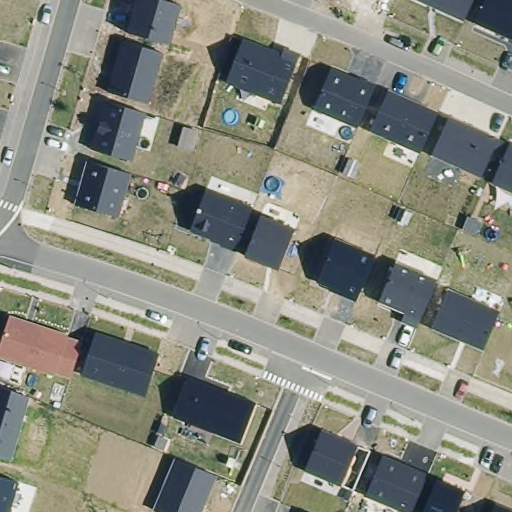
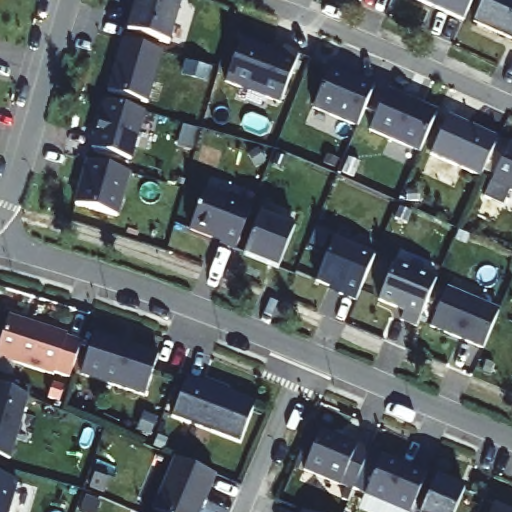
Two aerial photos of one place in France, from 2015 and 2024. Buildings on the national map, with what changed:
unchanged [(136,0),(163,0),(180,4),(171,43),(128,31),(136,0)]
unchanged [(463,21),(415,0),(472,0),(463,21)]
unchanged [(512,39),(473,23),(484,0),(512,0),(512,39)]
unchanged [(282,53),(284,48),(301,54),(281,105),(226,83),(242,39),(282,53)]
unchanged [(120,41),(162,53),(150,102),(106,90),(120,41)]
unchanged [(376,84),(358,130),(314,111),(330,69),(376,84)]
unchanged [(437,112),(420,153),(368,131),(386,90),(437,112)]
unchanged [(101,104),(145,114),(134,161),(91,148),(101,104)]
unchanged [(497,138),(480,177),(430,155),(446,116),(497,138)]
unchanged [(512,192),(490,182),(509,143),(512,144),(512,192)]
unchanged [(87,161),(130,173),(119,217),(75,203),(87,161)]
unchanged [(203,193),(252,210),(237,251),(190,232),(203,193)]
unchanged [(260,215),(295,228),(279,271),(244,258),(260,215)]
unchanged [(332,239),(375,255),(356,302),(316,282),(332,239)]
unchanged [(395,263),(436,278),(416,328),(400,323),(405,312),(380,302),(395,263)]
unchanged [(443,290),(498,311),(483,349),(429,327),(443,290)]
unchanged [(11,316),(82,340),(70,379),(0,359),(0,348),(11,316)]
unchanged [(160,352),(145,397),(82,373),(96,333),(160,352)]
unchanged [(255,401),(241,444),(172,418),(187,377),(255,401)]
unchanged [(29,396),(11,460),(0,457),(0,386),(29,396)]
unchanged [(321,430),(370,450),(353,492),(305,472),(321,430)]
unchanged [(428,472),(411,512),(401,512),(365,496),(383,454),(428,472)]
unchanged [(216,475),(201,512),(159,512),(153,509),(173,458),(216,475)]
unchanged [(17,482),(9,512),(0,512),(0,477),(17,482)]
unchanged [(463,490),(455,512),(423,512),(435,479),(463,490)]
unchanged [(510,512),(489,512),(492,505),(510,512)]

